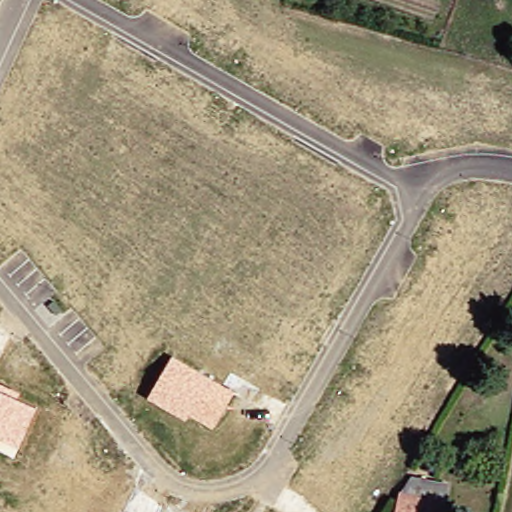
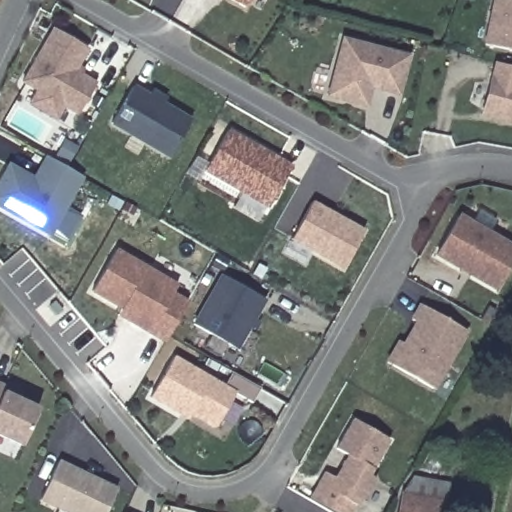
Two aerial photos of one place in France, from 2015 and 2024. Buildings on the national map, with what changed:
new [(230,0),(250,0),(246,8),(230,0)]
new [(493,0),(512,0),(512,51),(483,44),(493,0)]
new [(80,67),(85,70),(82,74),(97,82),(77,117),(62,110),(57,121),(27,105),(35,92),(20,84),(52,29),(90,50),(80,67)]
new [(400,97),(371,92),(367,109),(327,101),(342,39),(411,55),(400,97)]
new [(494,62),(512,67),(512,125),(480,117),(494,62)]
new [(171,160),(110,126),(132,86),(192,119),(171,160)]
new [(261,145),(279,156),(294,164),(271,204),(207,167),(230,128),(261,145)]
new [(37,179),(40,173),(49,157),(85,177),(52,235),(0,206),(0,186),(12,165),(37,179)]
new [(364,230),(343,270),(292,242),(312,202),(364,230)]
new [(434,257),(459,214),(512,244),(512,265),(496,293),(434,257)]
new [(96,291),(120,251),(181,286),(176,294),(192,303),(170,341),(132,320),(124,315),(127,308),(96,291)]
new [(192,325),(219,276),(266,301),(237,351),(192,325)]
unchanged [(385,362),(397,341),(402,343),(415,322),(410,319),(419,303),(468,333),(435,392),(385,362)]
unchanged [(174,357),(234,392),(214,428),(190,415),(186,421),(149,398),(174,357)]
unchanged [(20,393),(18,400),(37,407),(20,447),(0,438),(0,384),(20,393)]
new [(311,495),(326,470),(336,475),(349,453),(337,447),(355,417),(392,437),(372,472),(377,476),(366,497),(357,503),(352,512),(340,512),(311,495)]
unchanged [(107,512),(61,512),(39,502),(59,461),(119,488),(107,512)]
unchanged [(445,512),(401,512),(407,482),(449,492),(445,512)]

